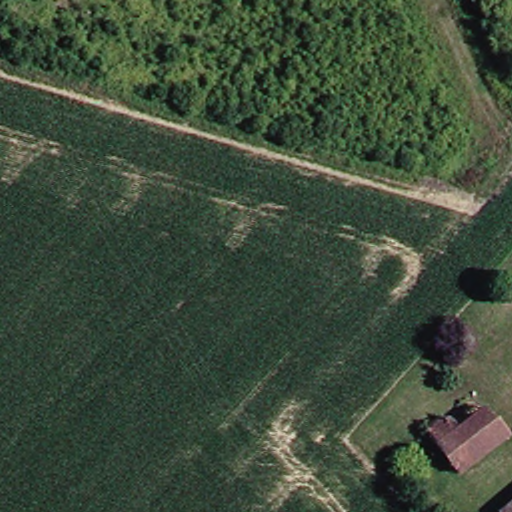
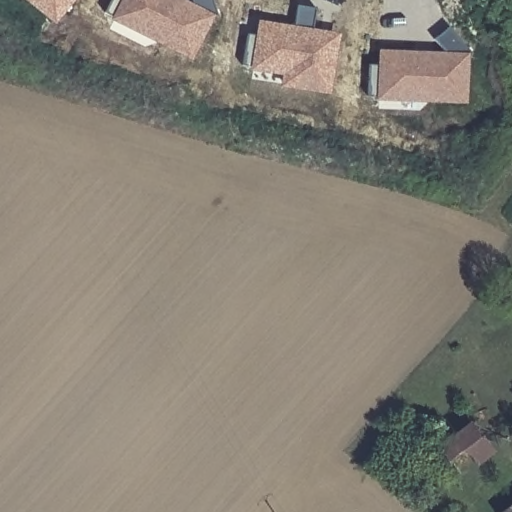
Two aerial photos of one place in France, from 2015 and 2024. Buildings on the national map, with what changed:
new [(71,0),(56,19),(32,0),(71,0)]
new [(192,0),(213,0),(218,15),(195,23),(185,41),(176,36),(163,41),(105,14),(112,0),(165,0),(164,1),(189,13),(195,10),(192,0)]
new [(292,85),(285,84),(287,73),(242,66),(247,34),(259,36),(261,24),(294,29),(298,6),(316,9),(311,42),(335,46),(333,56),(327,90),(292,85)]
new [(191,55),(163,41),(176,36),(185,41),(195,23),(209,18),(191,55)]
new [(431,99),(367,95),(370,63),(382,63),(383,52),(417,55),(417,61),(445,63),(450,58),(435,40),(449,27),(472,54),(454,70),(466,60),(462,101),(431,99)]
unchanged [(425,430),(475,393),(509,439),(460,476),(425,430)]
unchanged [(512,505),(512,512),(503,512),(512,505)]

